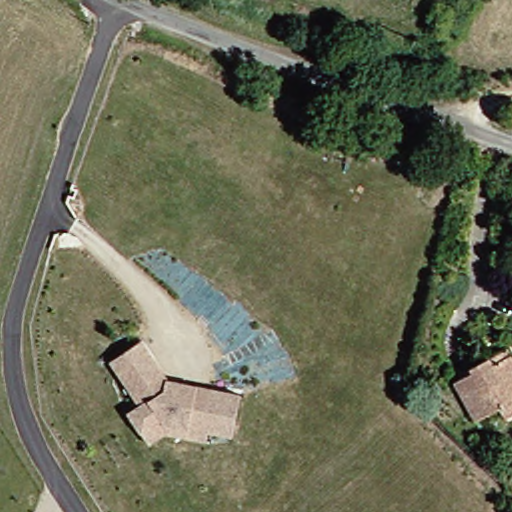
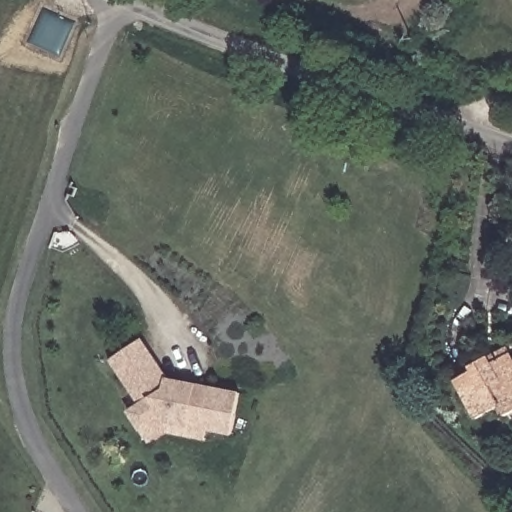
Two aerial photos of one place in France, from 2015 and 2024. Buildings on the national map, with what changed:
unchanged [(162,433),(145,443),(138,432),(126,412),(137,405),(118,376),(108,361),(139,339),(149,354),(165,381),(239,392),(232,433),(208,430),(206,443),(162,433)]
unchanged [(493,406),(468,419),(448,379),(465,369),(463,364),(486,351),(503,342),(508,350),(512,357),(512,360),(508,363),(512,370),(512,407),(497,414),(493,406)]

